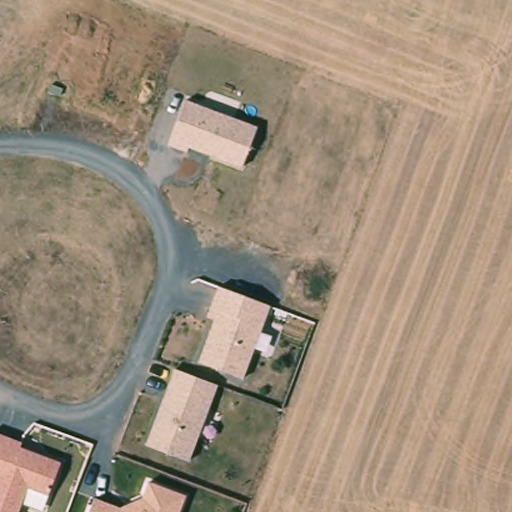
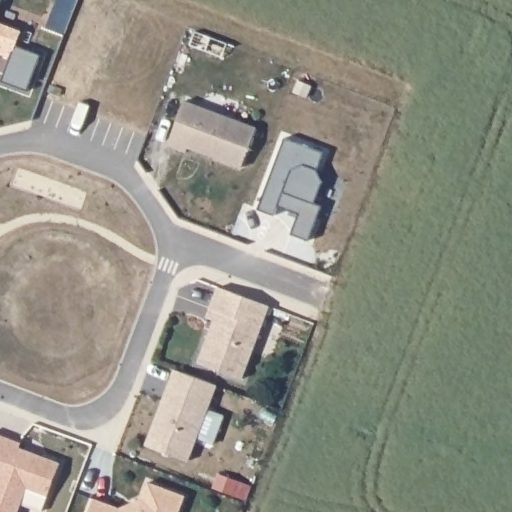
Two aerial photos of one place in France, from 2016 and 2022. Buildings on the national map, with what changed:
new [(0,5),(0,0),(2,0),(0,5)]
new [(0,52),(0,21),(21,30),(15,45),(39,54),(27,89),(3,80),(11,56),(0,52)]
unchanged [(189,148),(186,154),(166,146),(185,100),(257,128),(241,168),(189,148)]
new [(324,152),(318,170),(322,181),(315,203),(322,205),(310,240),(292,232),(299,212),(278,205),(275,215),(258,207),(285,137),(324,152)]
unchanged [(272,305),(242,378),(198,362),(213,319),(205,315),(216,285),(272,305)]
unchanged [(217,383),(189,460),(145,443),(174,367),(217,383)]
unchanged [(20,450),(57,460),(46,496),(25,488),(17,512),(0,512),(0,432),(22,441),(20,450)]
unchanged [(180,512),(88,512),(93,496),(120,506),(141,496),(149,480),(186,495),(180,512)]

